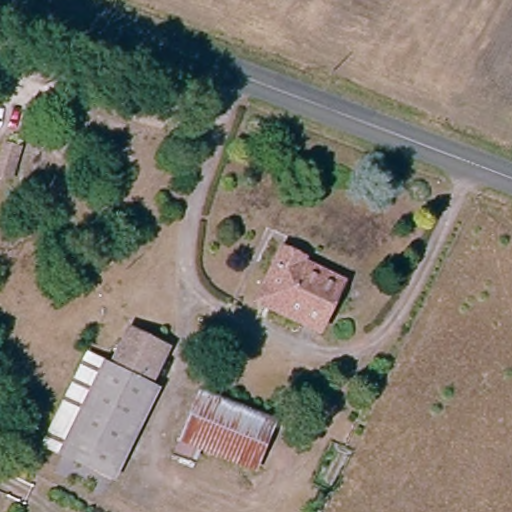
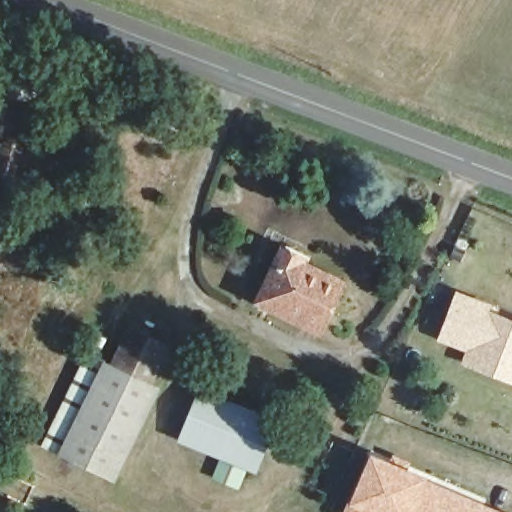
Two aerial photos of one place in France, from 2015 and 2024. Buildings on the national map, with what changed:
unchanged [(12,136),(32,143),(22,172),(1,164),(12,136)]
unchanged [(261,302),(282,254),(299,261),(343,282),(337,293),(318,329),(261,302)]
new [(494,305),(492,308),(511,316),(512,317),(512,384),(459,363),(464,351),(435,340),(455,289),(494,305)]
unchanged [(62,450),(111,366),(131,332),(168,349),(150,385),(159,389),(114,475),(62,450)]
unchanged [(45,441),(88,358),(111,366),(62,450),(45,441)]
unchanged [(202,402),(275,430),(258,474),(185,446),(202,402)]
new [(439,483),(427,512),(378,512),(355,502),(375,456),(439,483)]
new [(484,508),(492,512),(482,512),(484,508)]

